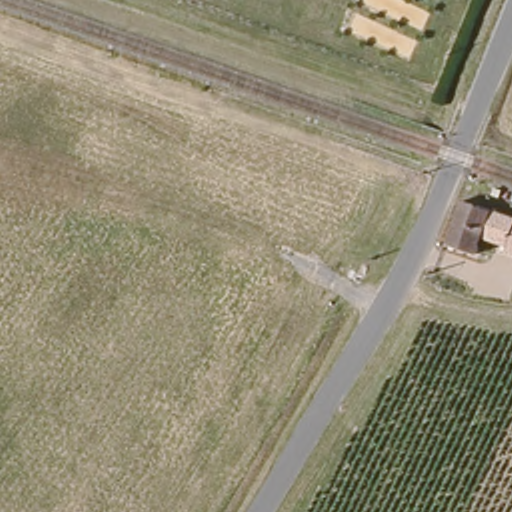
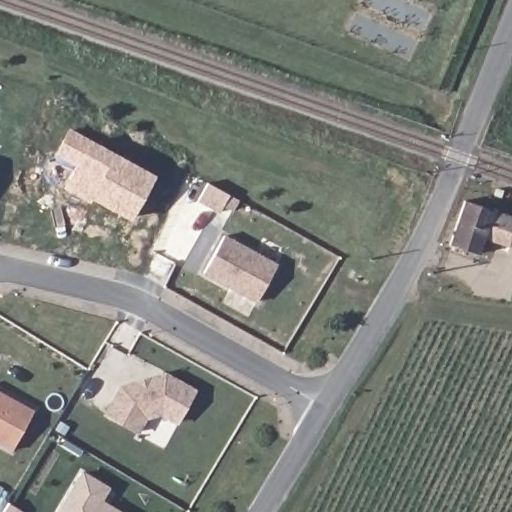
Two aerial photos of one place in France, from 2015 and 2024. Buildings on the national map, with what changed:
new [(130,221),(90,198),(89,202),(61,187),(75,166),(53,154),(68,128),(89,139),(155,175),(130,221)]
new [(241,204),(235,215),(226,210),(224,216),(201,204),(211,187),(241,204)]
unchanged [(446,246),(461,194),(496,208),(487,239),(480,262),(446,246)]
unchanged [(512,255),(505,252),(506,246),(487,239),(496,208),(512,214),(512,255)]
new [(280,269),(260,306),(207,277),(226,239),(280,269)]
new [(160,413),(144,416),(136,431),(106,414),(120,388),(163,374),(194,390),(175,422),(160,413)]
new [(0,449),(0,396),(35,416),(14,457),(0,449)]
new [(104,499),(119,512),(57,512),(81,470),(108,486),(104,499)]
new [(23,512),(2,512),(9,502),(23,512)]

